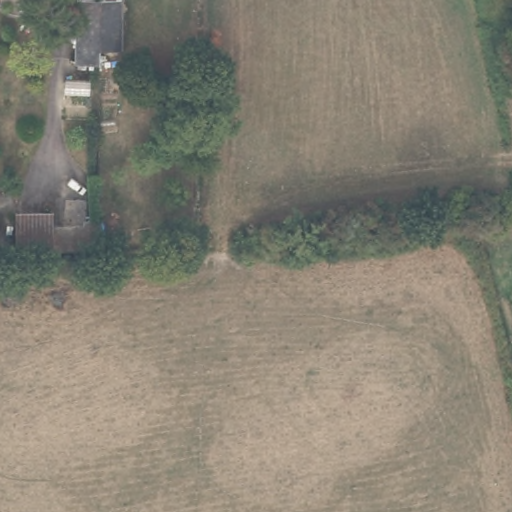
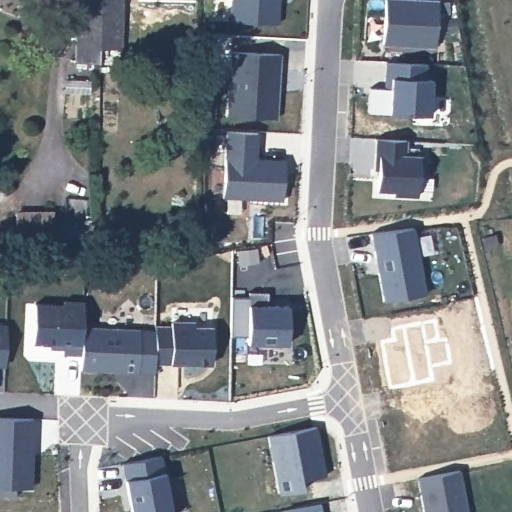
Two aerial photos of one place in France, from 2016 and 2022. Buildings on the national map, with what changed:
unchanged [(76,0),(100,0),(100,49),(99,61),(75,61),(76,0)]
unchanged [(100,49),(100,0),(121,0),(121,49),(100,49)]
new [(279,0),(277,24),(230,20),(231,0),(279,0)]
new [(406,0),(437,1),(435,46),(383,44),(385,0),(406,0)]
new [(231,51),(281,54),(280,71),(275,71),(274,91),(279,92),(277,119),(227,116),(231,51)]
new [(382,86),(383,61),(427,63),(425,78),(431,79),(429,115),(388,113),(367,112),(367,85),(382,86)]
new [(226,131),(257,133),(256,159),(285,160),(282,201),(222,197),(226,131)]
new [(376,139),(406,140),(405,155),(424,156),(423,173),(418,173),(417,196),(393,195),(393,191),(377,191),(377,170),(374,170),(376,139)]
unchanged [(57,209),(57,233),(17,233),(17,209),(57,209)]
new [(413,228),(426,294),(383,302),(371,233),(413,228)]
unchanged [(494,230),(497,244),(485,246),(482,232),(494,230)]
new [(248,292),(267,293),(267,305),(288,306),(287,345),(247,344),(248,292)]
new [(34,304),(63,305),(63,301),(83,302),(82,327),(81,355),(62,354),(62,345),(32,344),(34,304)]
new [(140,330),(154,329),(153,323),(171,323),(171,319),(195,320),(196,324),(212,325),(211,364),(154,363),(153,373),(137,373),(140,330)]
new [(6,326),(5,365),(0,365),(0,326),(6,326)]
new [(81,355),(82,327),(140,330),(137,373),(80,370),(81,355)]
new [(32,419),(30,488),(0,487),(0,417),(32,419)]
new [(316,427),(325,476),(301,480),(303,490),(278,495),(267,436),(316,427)]
new [(161,456),(171,512),(131,512),(122,463),(161,456)]
new [(458,469),(467,512),(423,512),(416,477),(458,469)]
new [(282,508),(318,501),(320,512),(284,512),(282,508)]

